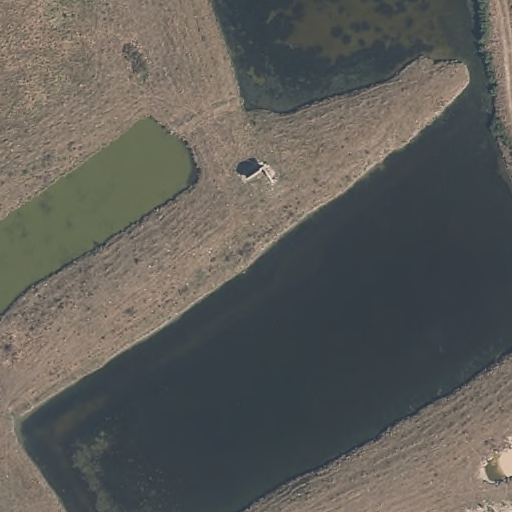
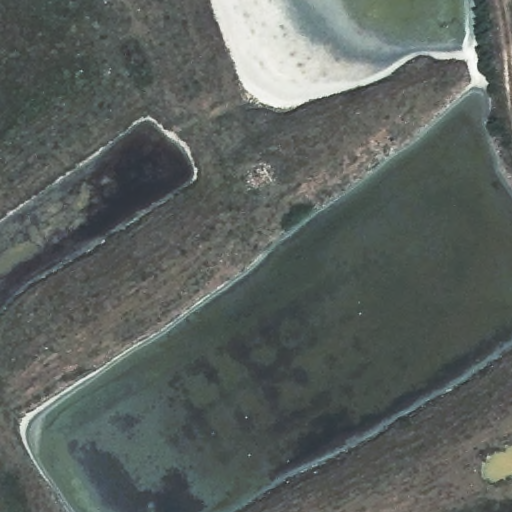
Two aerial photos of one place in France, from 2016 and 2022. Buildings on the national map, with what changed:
unchanged [(283,183),(263,196),(244,168),(265,155),(283,183)]

